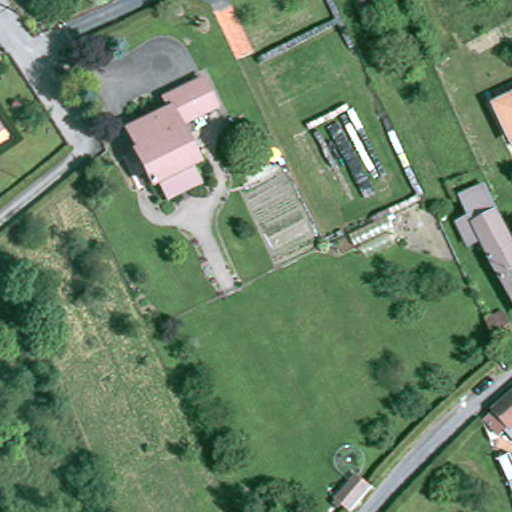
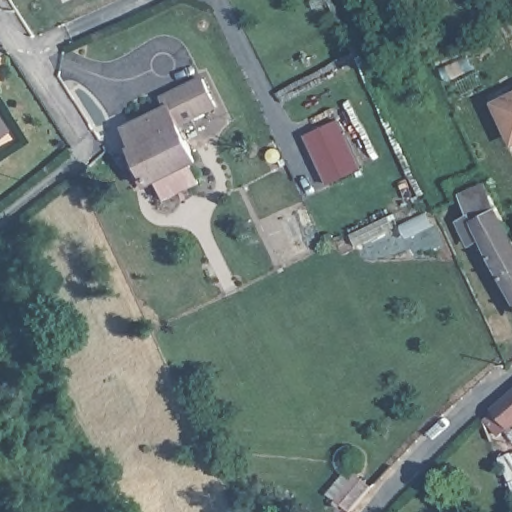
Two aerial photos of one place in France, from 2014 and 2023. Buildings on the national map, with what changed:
unchanged [(371,0),(375,0),(382,14),(367,21),(360,6),(371,0)]
unchanged [(170,109),(164,99),(204,79),(217,107),(179,126),(197,162),(190,165),(200,184),(167,199),(159,181),(152,184),(134,148),(136,147),(127,130),(170,109)]
unchanged [(512,99),(512,133),(499,105),(512,99)]
new [(362,171),(327,186),(305,137),(340,120),(362,171)]
unchanged [(490,187),(494,194),(503,211),(512,227),(512,283),(492,246),(485,250),(480,242),(475,244),(465,223),(477,217),(467,196),(490,187)]
unchanged [(510,314),(512,319),(512,340),(505,344),(494,321),(510,314)]
unchanged [(512,395),(512,425),(505,431),(490,414),(512,395)]
unchanged [(357,477),(372,489),(353,511),(344,503),(339,499),(346,491),(357,477)]

